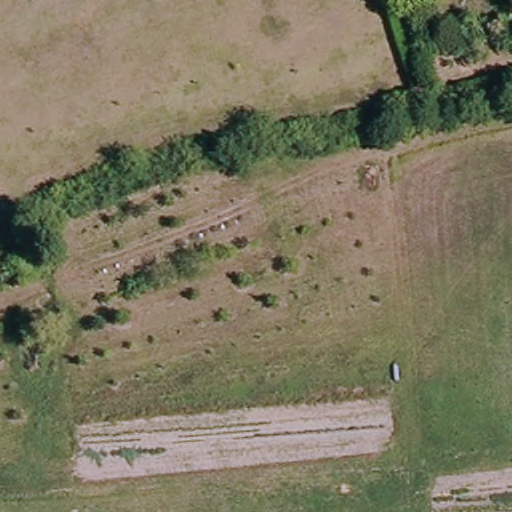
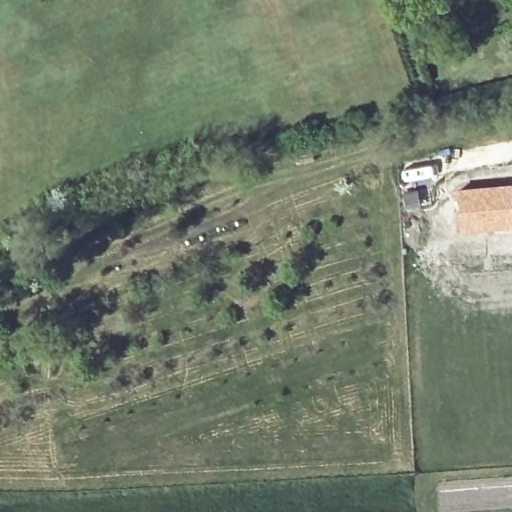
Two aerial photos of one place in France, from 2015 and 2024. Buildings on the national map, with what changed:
new [(512,228),(459,233),(455,189),(512,184),(512,228)]

